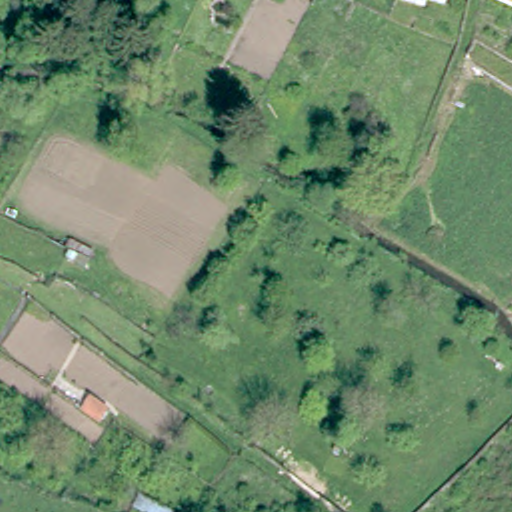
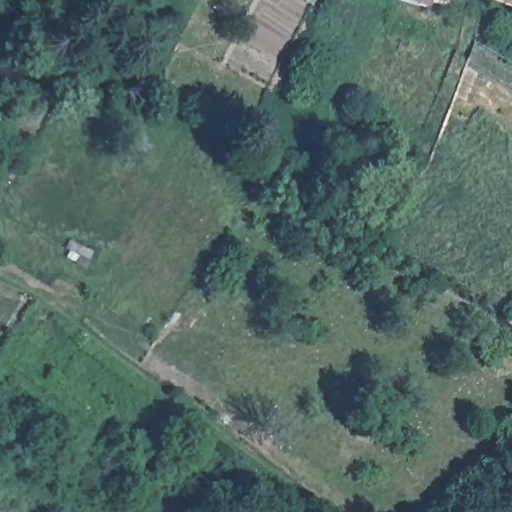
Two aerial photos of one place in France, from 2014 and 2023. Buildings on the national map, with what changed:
unchanged [(394,0),(446,0),(442,13),(424,8),(422,14),(392,4),(394,0)]
unchanged [(499,0),(512,0),(512,6),(499,0)]

